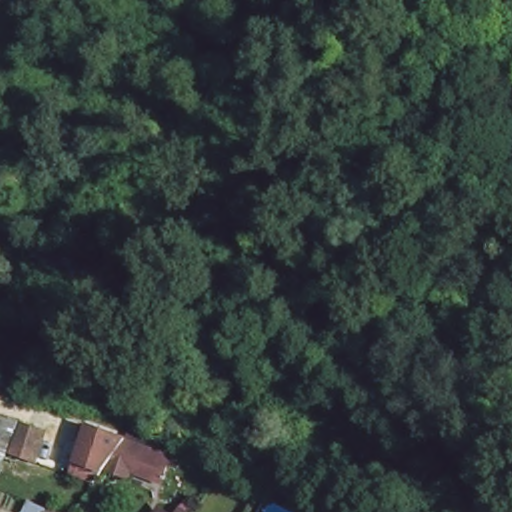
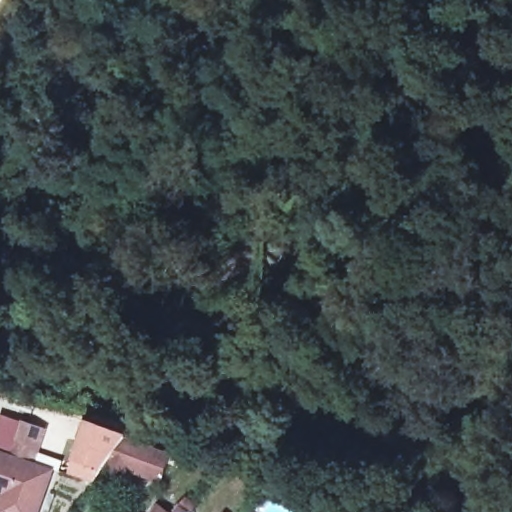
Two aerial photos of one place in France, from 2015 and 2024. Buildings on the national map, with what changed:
new [(3,417),(50,430),(37,465),(55,471),(42,512),(0,512),(0,497),(0,424),(3,417)]
demolished [(49,433),(36,466),(0,452),(0,419),(49,433)]
unchanged [(124,440),(130,433),(167,448),(162,457),(170,462),(157,491),(102,472),(96,485),(70,477),(88,427),(124,440)]
demolished [(45,512),(22,512),(26,504),(45,512)]

